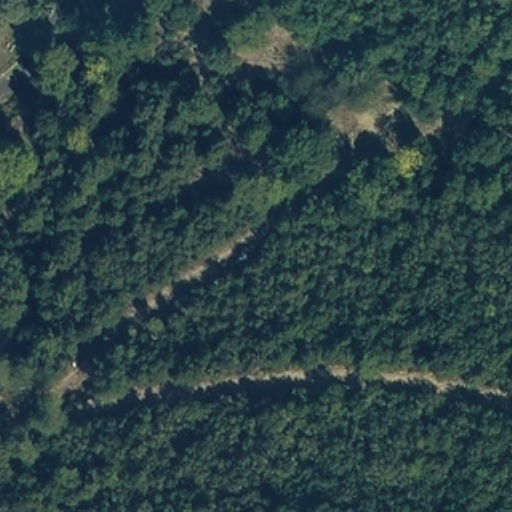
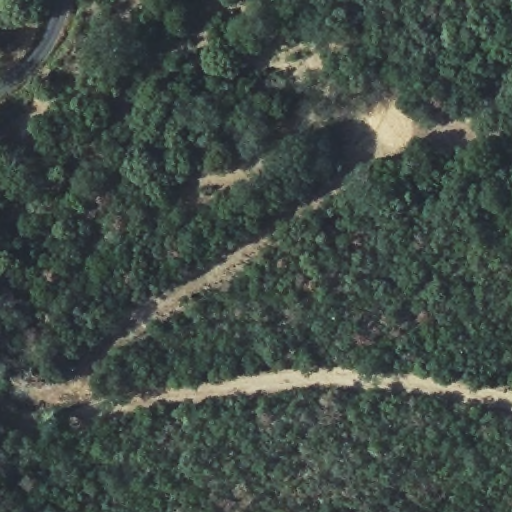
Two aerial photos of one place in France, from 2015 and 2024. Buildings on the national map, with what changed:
unchanged [(489,79),(496,106),(483,109),(473,81),(489,79)]

